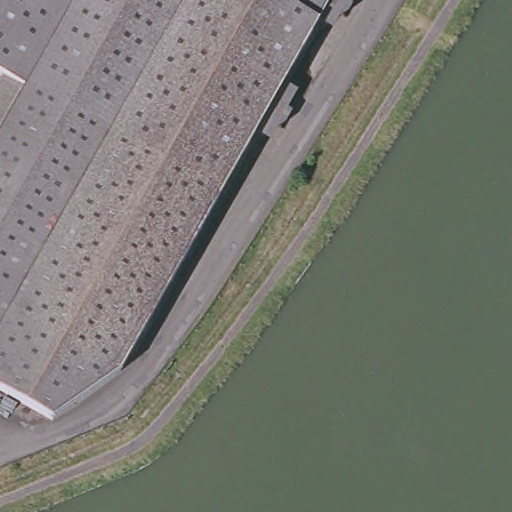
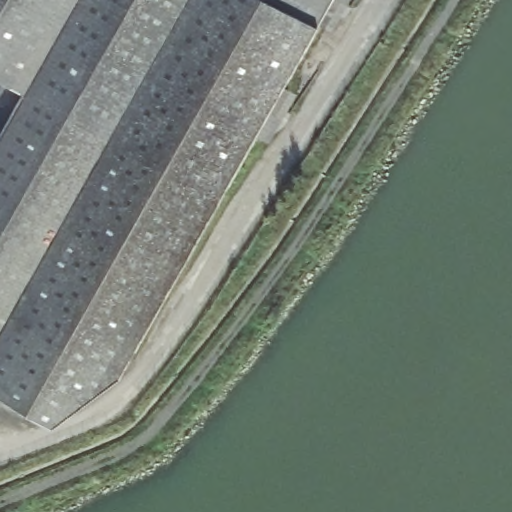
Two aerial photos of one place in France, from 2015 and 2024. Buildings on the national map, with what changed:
unchanged [(102,382),(33,428),(0,409),(0,118),(13,95),(0,87),(0,0),(330,0),(102,382)]

